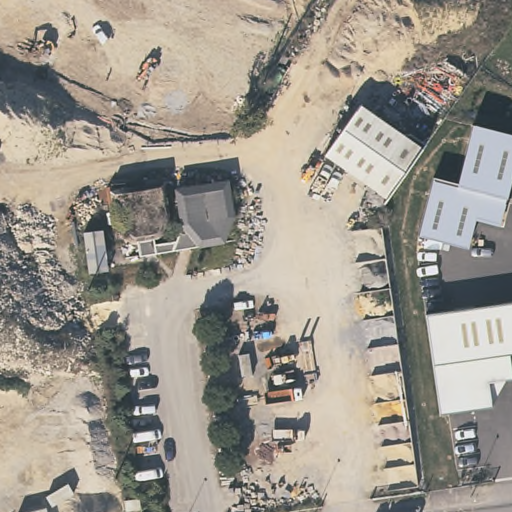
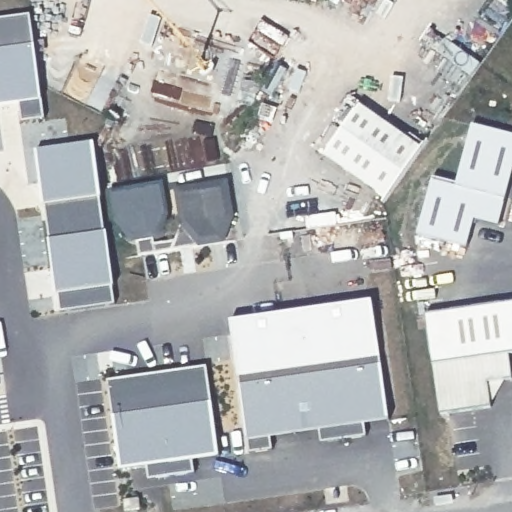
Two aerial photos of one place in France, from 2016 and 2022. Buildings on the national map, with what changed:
new [(21,102),(0,106),(0,20),(29,15),(42,99),(44,116),(24,119),(21,102)]
demolished [(0,91),(0,83),(1,83),(0,91)]
unchanged [(402,127),(410,126),(425,137),(385,192),(324,147),(359,98),(402,127)]
unchanged [(512,135),(512,180),(508,198),(499,226),(474,221),(468,248),(419,234),(434,177),(459,184),(472,125),(512,135)]
new [(99,195),(111,287),(113,301),(64,309),(60,294),(58,294),(44,204),(35,149),(90,142),(99,195)]
unchanged [(164,239),(178,236),(183,223),(177,189),(229,181),(234,217),(225,243),(139,255),(138,241),(164,239)]
unchanged [(168,182),(172,218),(164,239),(138,241),(126,243),(115,223),(111,191),(168,182)]
new [(365,423),(367,435),(324,441),(321,429),(270,436),(272,449),(250,452),(248,439),(230,319),(371,300),(389,419),(365,423)]
unchanged [(497,379),(500,404),(449,410),(434,311),(512,300),(512,377),(497,379)]
new [(193,459),(195,472),(149,478),(148,465),(120,469),(109,381),(206,367),(219,455),(193,459)]

